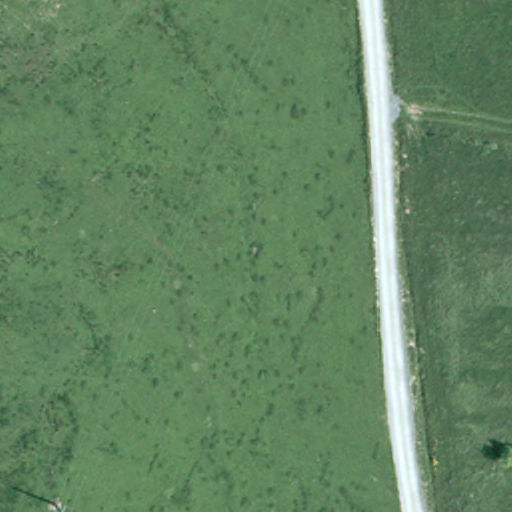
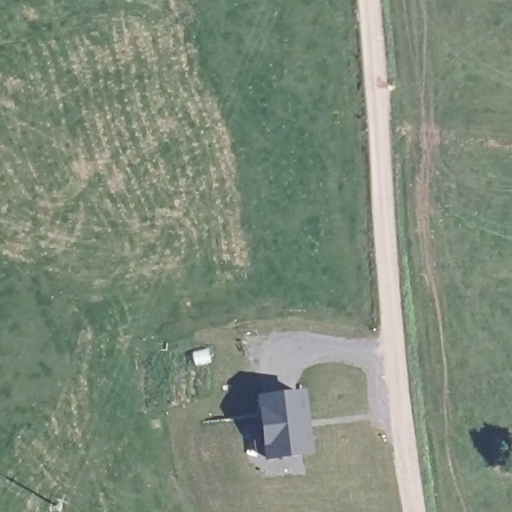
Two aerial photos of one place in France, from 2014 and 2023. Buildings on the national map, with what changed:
new [(264,462),(256,397),(306,392),(313,458),(264,462)]

